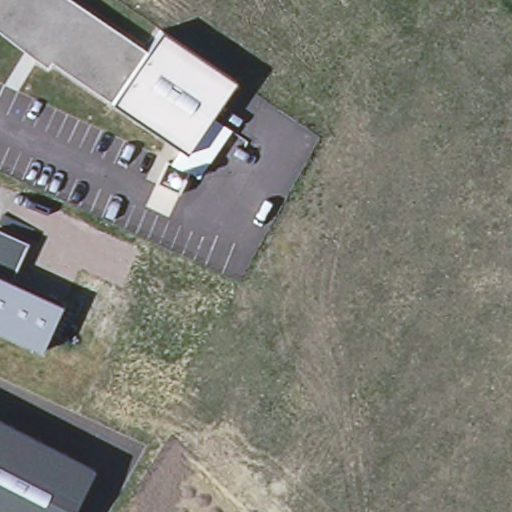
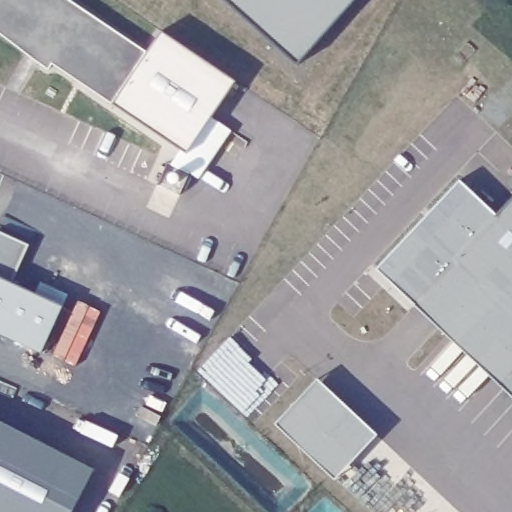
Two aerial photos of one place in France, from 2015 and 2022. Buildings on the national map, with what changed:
unchanged [(162,33),(234,81),(212,114),(231,131),(200,179),(173,164),(179,146),(115,105),(51,64),(47,68),(0,33),(0,0),(68,0),(147,54),(162,33)]
new [(225,0),(353,0),(296,64),(225,0)]
new [(376,268),(459,180),(496,214),(512,197),(512,396),(376,268)]
unchanged [(11,283),(62,309),(43,352),(0,333),(0,234),(27,247),(11,283)]
new [(377,434),(334,479),(274,423),(317,379),(377,434)]
unchanged [(72,512),(0,512),(0,421),(94,471),(72,512)]

